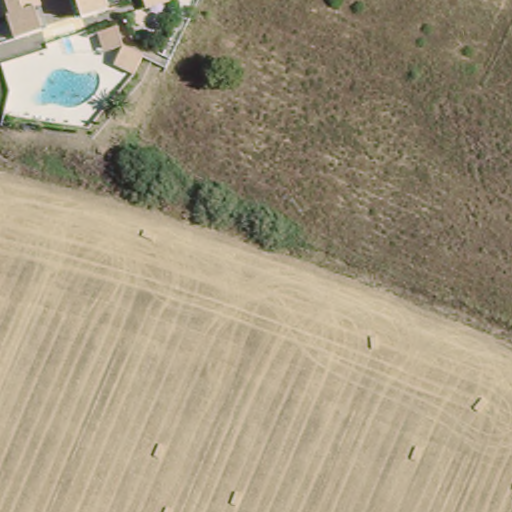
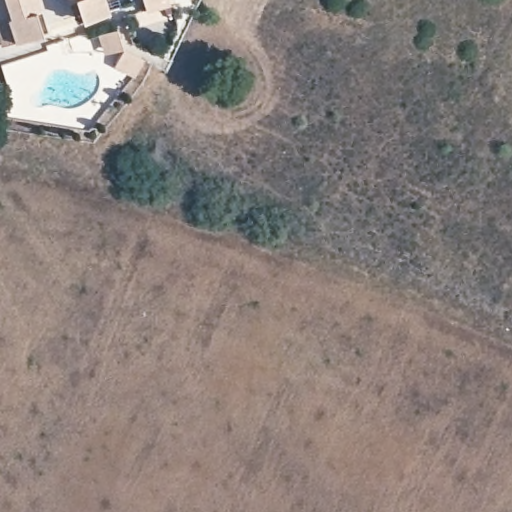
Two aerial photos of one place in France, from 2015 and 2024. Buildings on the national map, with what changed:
unchanged [(2,0),(0,1),(0,0),(2,0)]
unchanged [(18,30),(10,6),(1,9),(0,6),(0,1),(2,0),(38,0),(45,21),(18,30)]
unchanged [(80,14),(75,0),(105,0),(106,5),(80,14)]
unchanged [(143,0),(148,0),(143,1),(143,0)]

